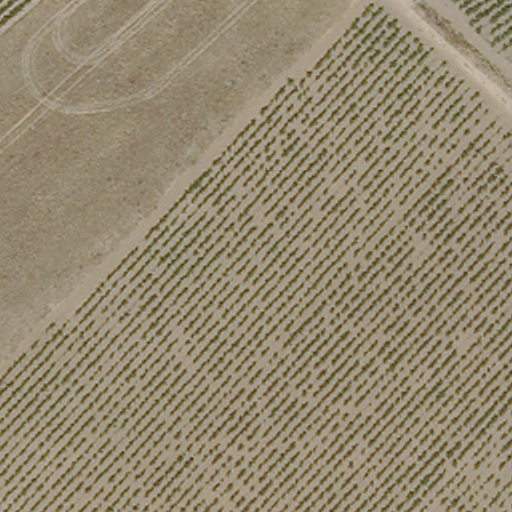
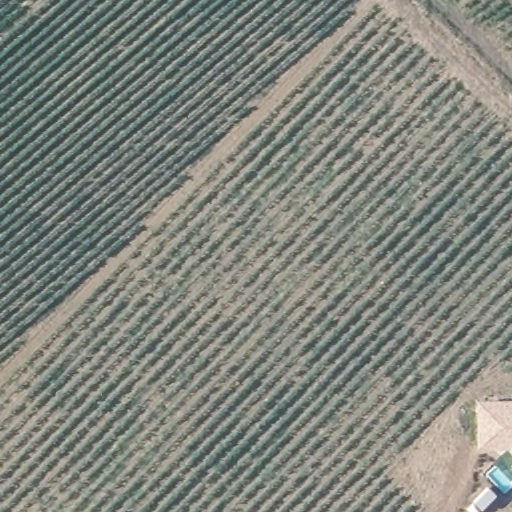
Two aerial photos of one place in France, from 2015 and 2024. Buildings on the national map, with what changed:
new [(508,447),(476,448),(475,399),(512,399),(512,451),(508,447)]
new [(510,468),(512,467),(512,470),(510,468)]

